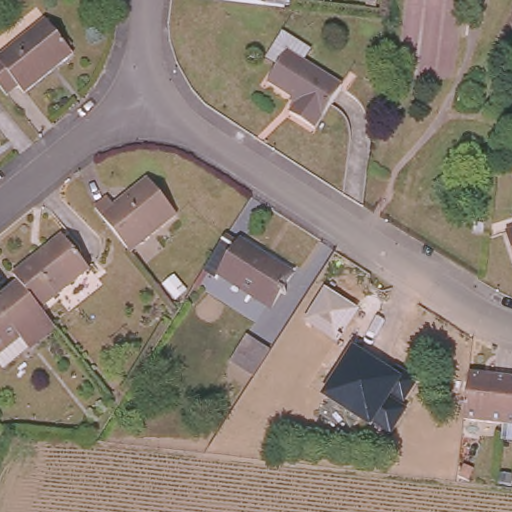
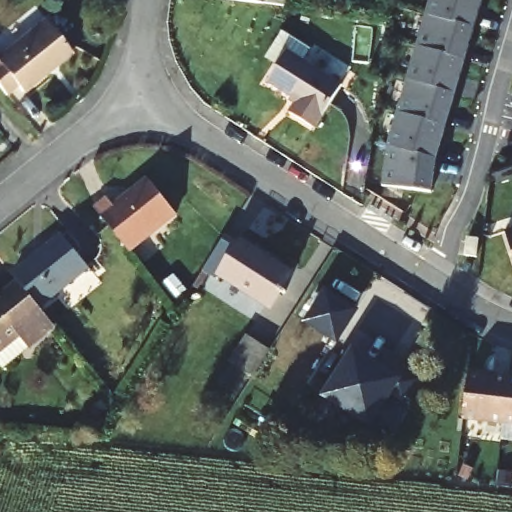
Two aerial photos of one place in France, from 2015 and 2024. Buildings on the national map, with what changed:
unchanged [(264,0),(264,2),(243,0),(264,0)]
new [(431,0),(483,0),(475,27),(427,14),(431,0)]
new [(418,47),(427,14),(475,27),(466,60),(418,47)]
unchanged [(0,88),(0,55),(46,18),(72,52),(23,91),(18,85),(6,96),(0,88)]
new [(408,80),(418,47),(466,60),(456,93),(408,80)]
unchanged [(287,51),(342,85),(316,127),(291,111),(298,100),(268,82),(287,51)]
new [(398,112),(408,80),(456,93),(446,127),(398,112)]
new [(389,146),(398,112),(446,127),(437,159),(389,146)]
new [(383,186),(389,146),(437,159),(432,192),(383,186)]
unchanged [(95,207),(108,197),(114,205),(148,177),(177,214),(130,251),(95,207)]
unchanged [(57,229),(84,262),(35,302),(13,275),(9,269),(57,229)]
unchanged [(512,230),(512,247),(507,232),(512,230)]
unchanged [(247,249),(250,244),(303,277),(281,312),(229,280),(226,283),(213,275),(234,241),(247,249)]
unchanged [(13,275),(35,302),(51,322),(25,343),(0,362),(0,285),(13,275)]
unchanged [(359,309),(337,345),(301,322),(324,287),(359,309)]
unchanged [(247,335),(269,348),(253,374),(230,361),(247,335)]
unchanged [(350,347),(413,383),(399,408),(404,411),(391,432),(373,422),(370,425),(321,397),(350,347)]
unchanged [(506,401),(504,422),(464,418),(470,372),(509,377),(506,401)]
unchanged [(506,401),(509,377),(512,377),(512,423),(504,422),(506,401)]

